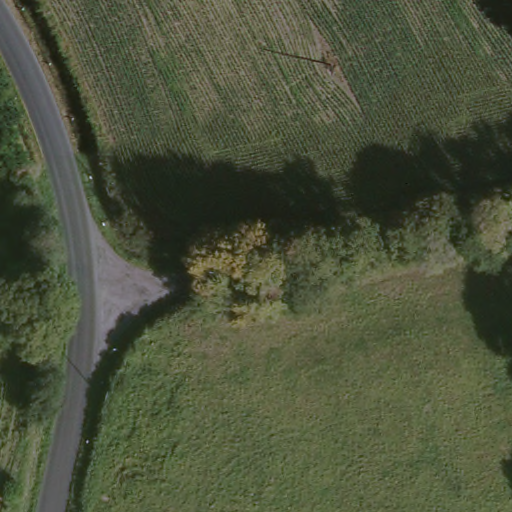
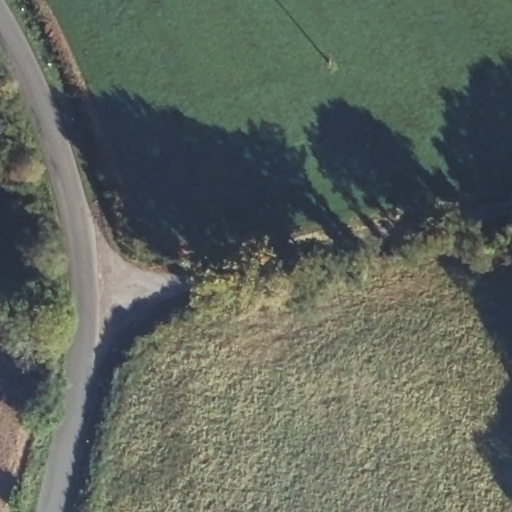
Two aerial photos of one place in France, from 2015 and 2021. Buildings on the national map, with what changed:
[]

